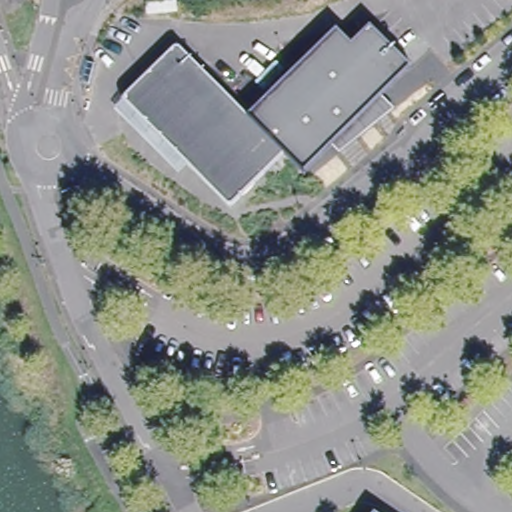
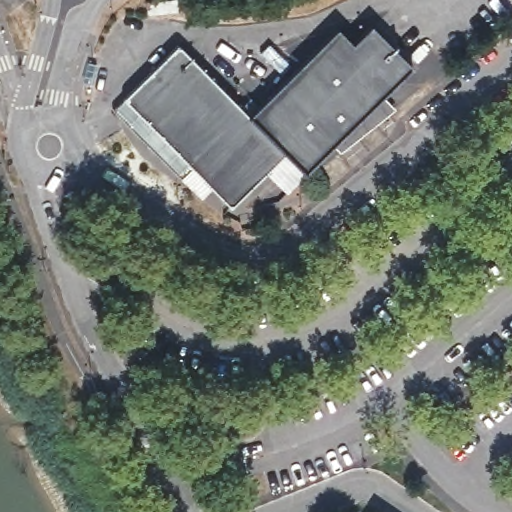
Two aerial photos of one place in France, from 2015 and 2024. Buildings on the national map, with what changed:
unchanged [(237,119),(288,65),(324,28),(339,44),(358,24),(400,65),(374,93),(294,175),(273,155),(221,210),(111,104),(164,49),(237,119)]

